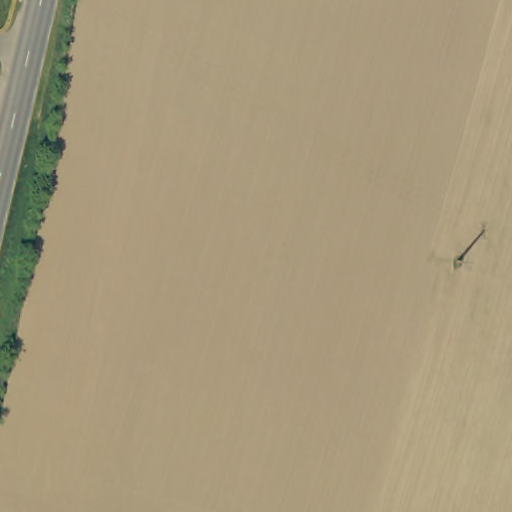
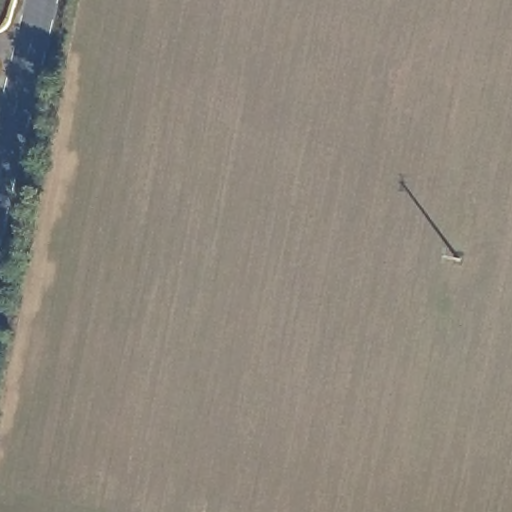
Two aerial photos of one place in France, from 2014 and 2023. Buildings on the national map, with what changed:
[]

